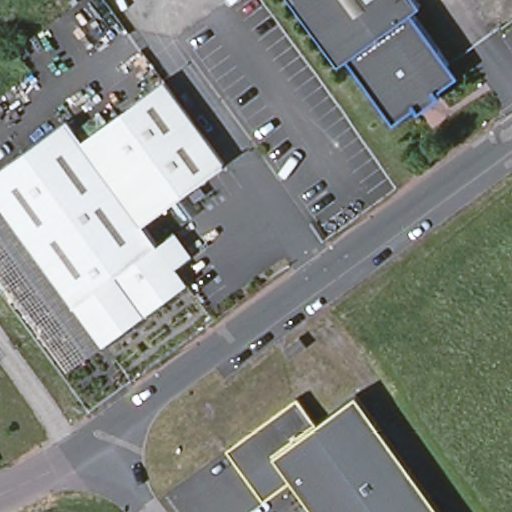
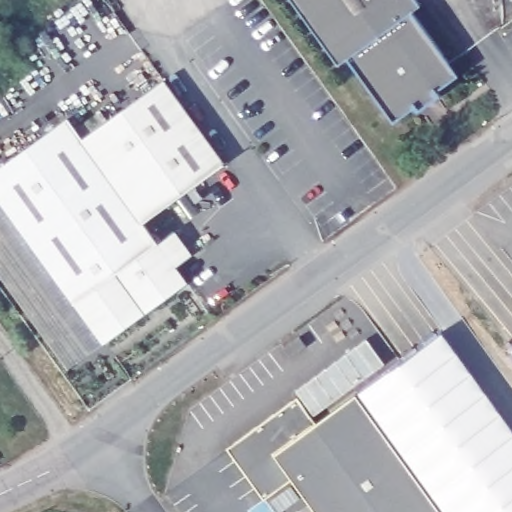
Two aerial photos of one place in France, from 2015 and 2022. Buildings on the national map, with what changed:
unchanged [(408,12),(453,72),(444,79),(446,82),(435,92),(437,96),(415,112),(411,107),(400,116),(397,112),(388,119),(344,58),(335,65),(290,0),(414,0),(418,5),(408,12)]
unchanged [(81,137),(163,78),(225,162),(143,222),(157,242),(75,302),(0,200),(0,164),(66,117),(81,137)]
unchanged [(157,242),(160,245),(175,234),(192,257),(176,268),(186,281),(103,342),(75,302),(157,242)]
new [(353,391),(441,330),(512,429),(512,512),(441,512),(353,391)]
unchanged [(295,333),(302,342),(286,355),(279,345),(295,333)]
unchanged [(290,475),(260,496),(223,444),(295,393),(313,419),(353,391),(441,512),(317,512),(290,475)]

